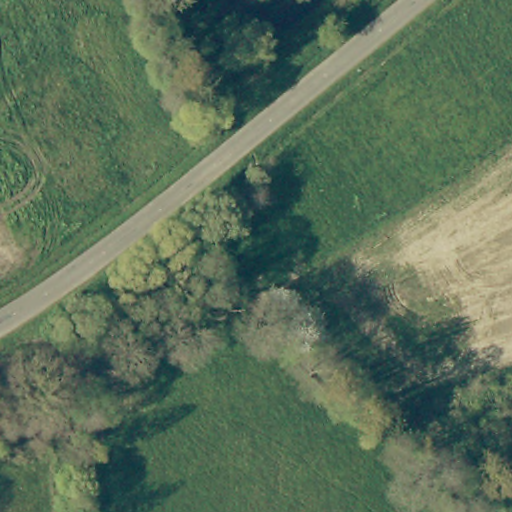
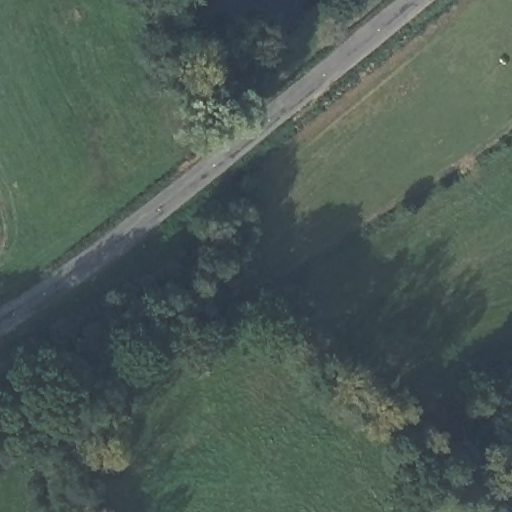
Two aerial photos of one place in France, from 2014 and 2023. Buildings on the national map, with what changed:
[]

